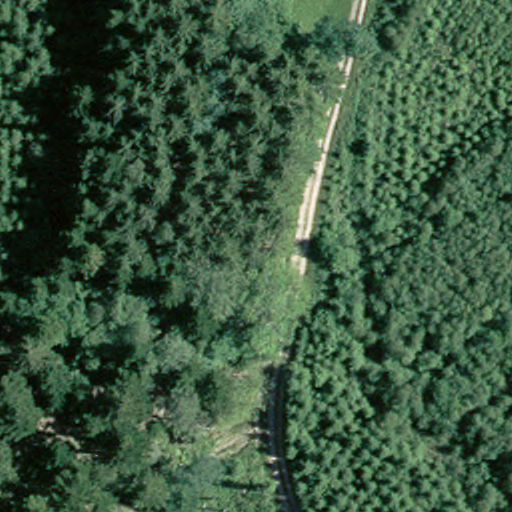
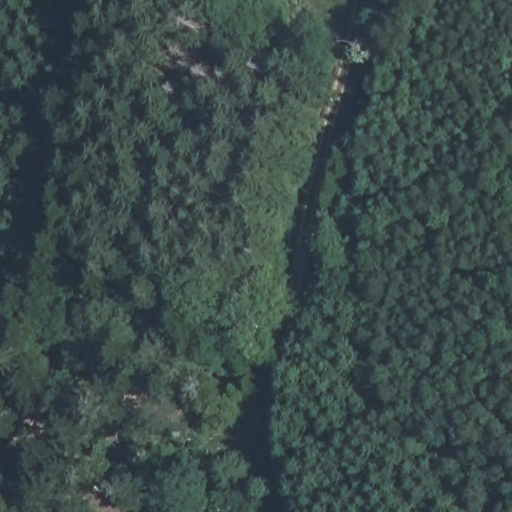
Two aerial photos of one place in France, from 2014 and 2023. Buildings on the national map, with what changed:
[]

